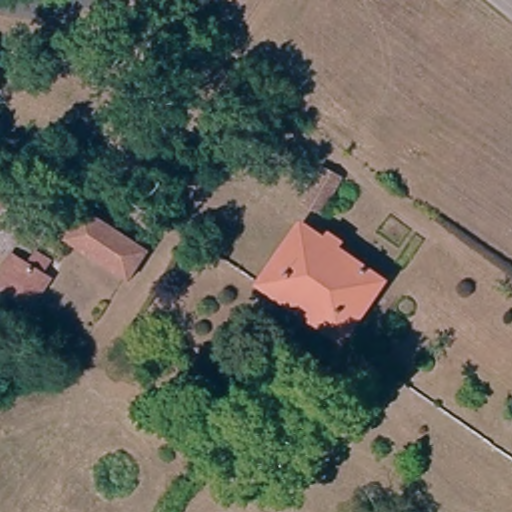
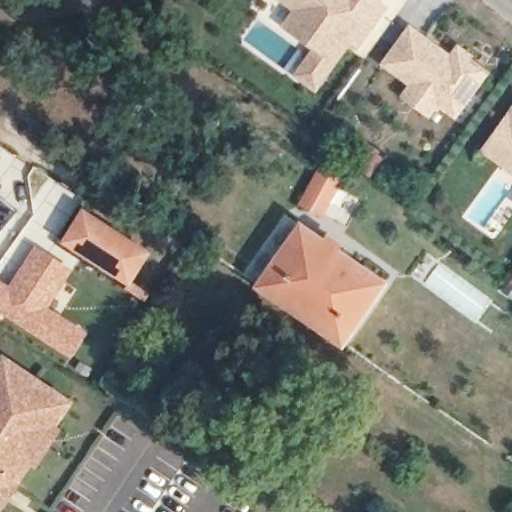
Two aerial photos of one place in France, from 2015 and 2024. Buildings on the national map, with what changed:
new [(299,76),(319,50),(287,27),(297,14),(299,11),(284,0),(346,0),(349,0),(374,0),(375,1),(386,9),(366,36),(359,47),(350,41),(335,62),(325,76),(317,89),(304,80),(299,76)]
new [(386,65),(411,30),(452,60),(460,50),(471,57),(466,63),(485,76),(456,116),(439,104),(430,115),(406,97),(414,85),(386,65)]
new [(487,150),(512,116),(512,169),(507,165),(487,150)]
unchanged [(293,206),(311,170),(330,180),(312,215),(293,206)]
demolished [(9,204),(0,215),(0,196),(9,204)]
new [(16,210),(0,230),(0,197),(16,210)]
unchanged [(60,241),(75,216),(79,212),(144,255),(124,283),(119,280),(60,241)]
unchanged [(304,317),(260,287),(302,227),(312,234),(383,284),(342,343),(304,317)]
new [(10,285),(36,245),(75,269),(49,307),(88,331),(71,359),(3,315),(0,320),(0,278),(10,285)]
demolished [(0,294),(0,269),(7,257),(21,266),(30,254),(45,263),(37,277),(18,305),(0,294)]
new [(4,360),(14,367),(67,403),(50,429),(51,428),(58,433),(36,465),(29,460),(11,487),(2,500),(0,503),(0,366),(4,360)]

